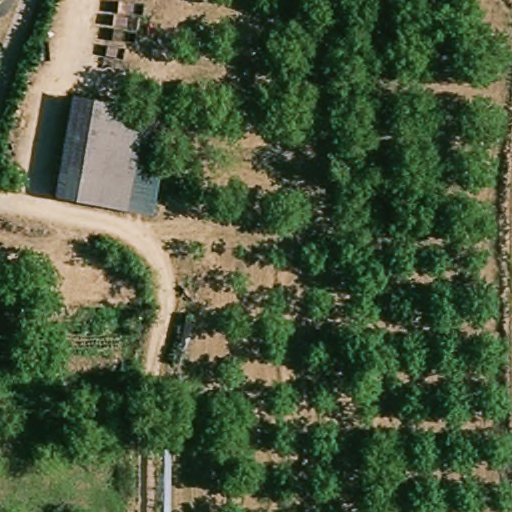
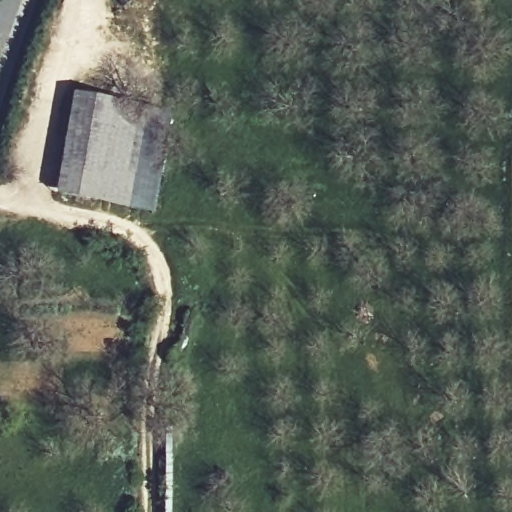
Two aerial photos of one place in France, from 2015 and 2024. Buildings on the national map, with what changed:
unchanged [(58,202),(74,103),(110,109),(147,115),(130,214),(107,210),(58,202)]

